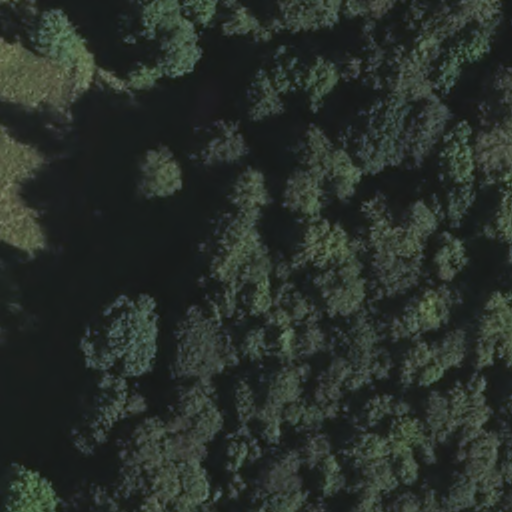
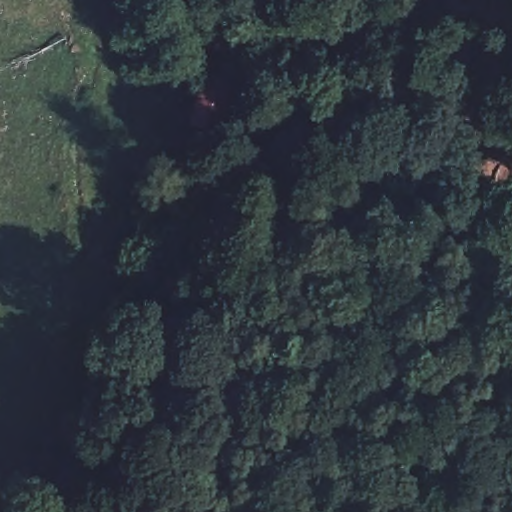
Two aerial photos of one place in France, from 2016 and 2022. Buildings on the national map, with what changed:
unchanged [(229,114),(222,138),(190,129),(205,72),(238,81),(229,114)]

